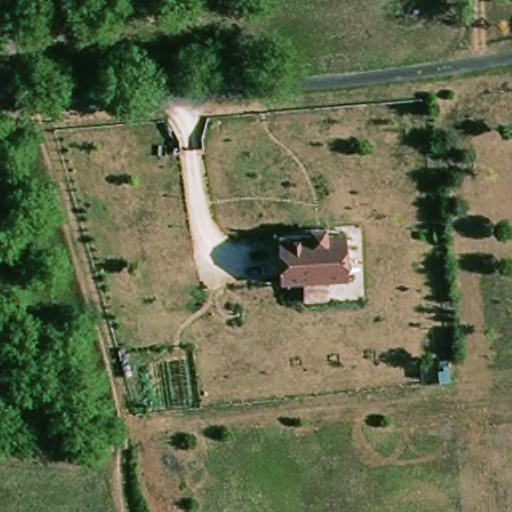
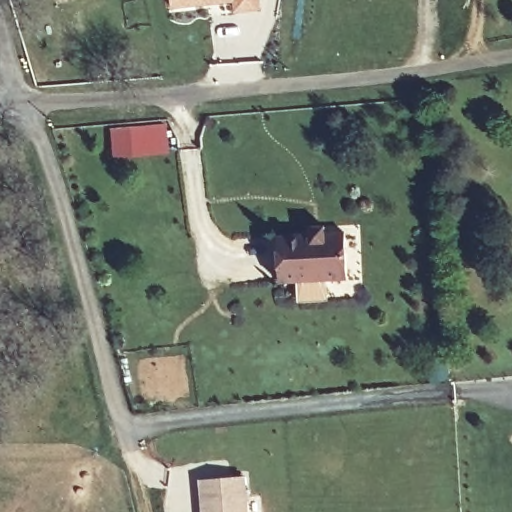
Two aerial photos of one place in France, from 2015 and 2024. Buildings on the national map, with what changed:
new [(239,12),(237,2),(175,8),(174,0),(260,0),(262,10),(239,12)]
new [(115,160),(112,129),(167,125),(170,155),(115,160)]
unchanged [(310,232),(309,224),(328,223),(329,232),(347,232),(347,280),(280,282),(279,233),(310,232)]
new [(207,480),(247,477),(248,512),(208,512),(207,480)]

